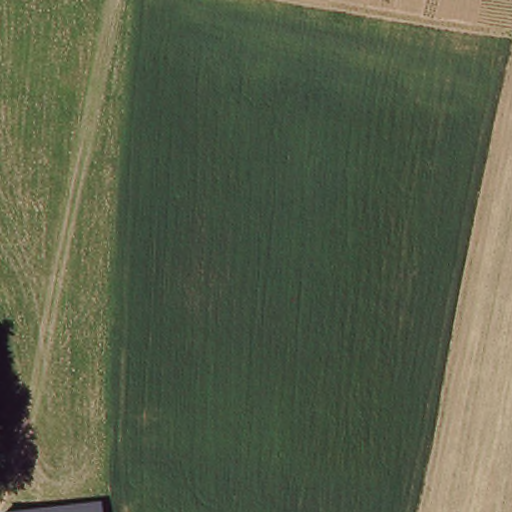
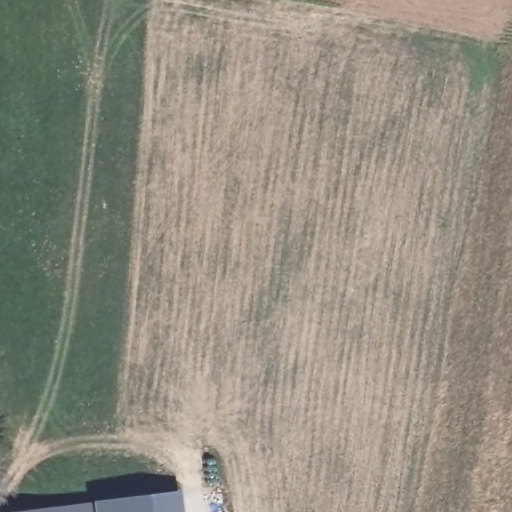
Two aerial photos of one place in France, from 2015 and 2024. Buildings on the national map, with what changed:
new [(105,500),(182,491),(185,512),(107,512),(105,500)]
unchanged [(105,500),(107,512),(32,512),(105,500)]

